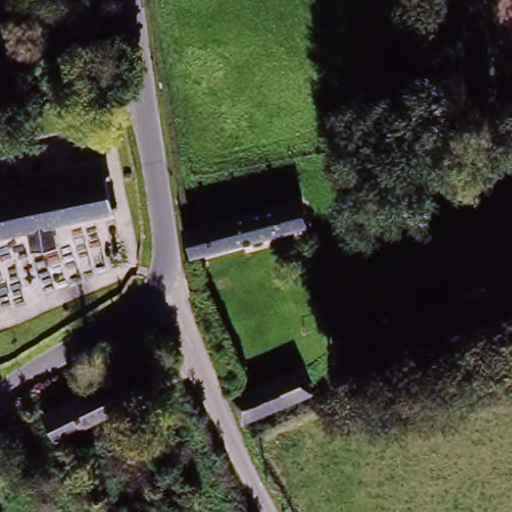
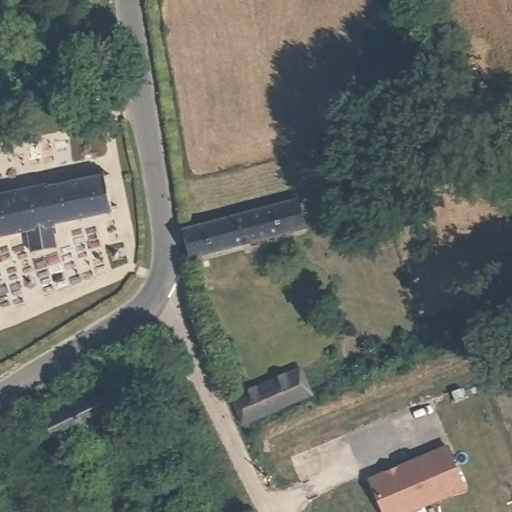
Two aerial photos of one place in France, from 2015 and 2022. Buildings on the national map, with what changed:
unchanged [(111,216),(51,227),(53,250),(28,254),(25,230),(0,235),(0,193),(105,178),(111,216)]
unchanged [(185,235),(184,232),(300,203),(308,229),(190,260),(185,235)]
unchanged [(298,371),(309,400),(243,426),(231,395),(298,371)]
unchanged [(56,427),(45,430),(38,418),(114,379),(126,403),(60,436),(56,427)]
new [(449,445),(467,490),(416,512),(383,512),(370,477),(449,445)]

